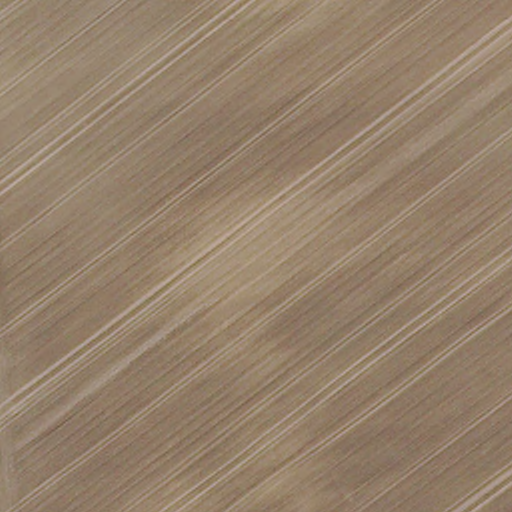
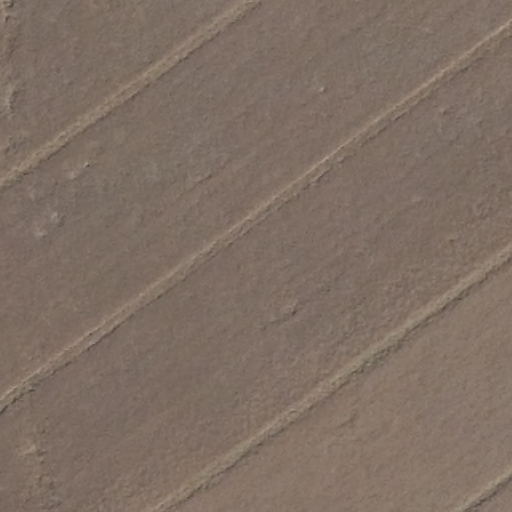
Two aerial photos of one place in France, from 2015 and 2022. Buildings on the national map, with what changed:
[]

